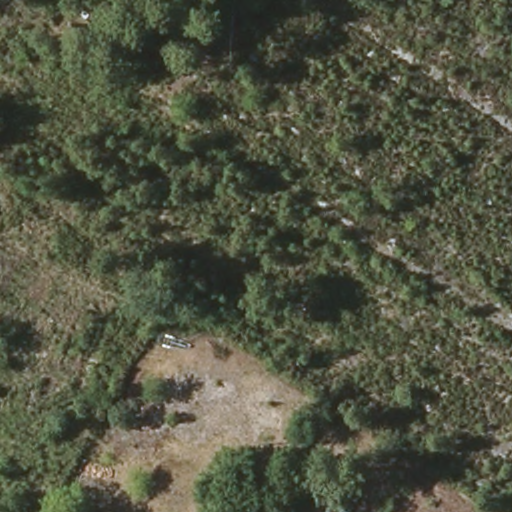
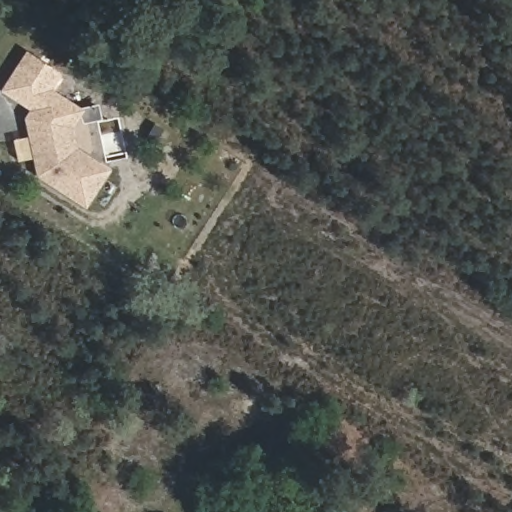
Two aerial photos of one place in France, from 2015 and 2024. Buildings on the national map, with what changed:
new [(87,208),(37,176),(25,116),(30,109),(1,90),(27,51),(62,73),(52,89),(85,109),(74,126),(78,147),(111,169),(87,208)]

